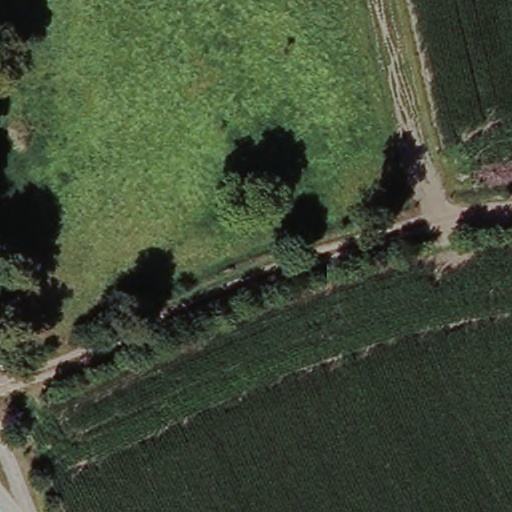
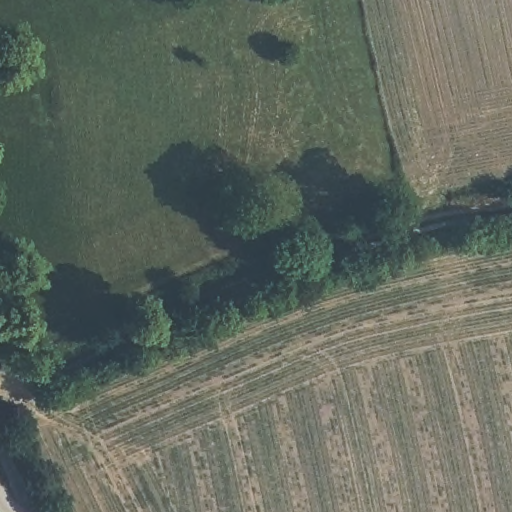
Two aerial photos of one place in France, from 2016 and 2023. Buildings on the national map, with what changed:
unchanged [(105,287),(143,272),(156,302),(117,315),(105,287)]

